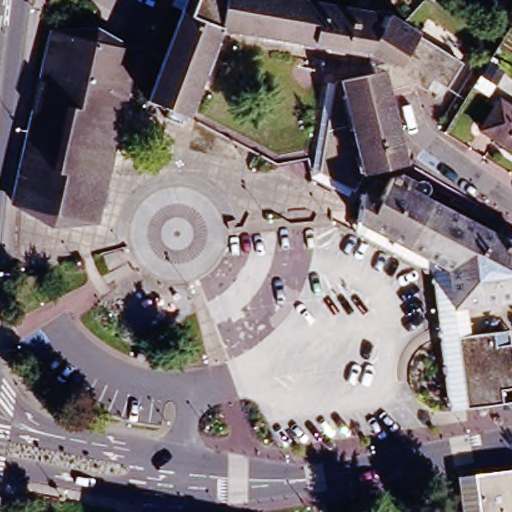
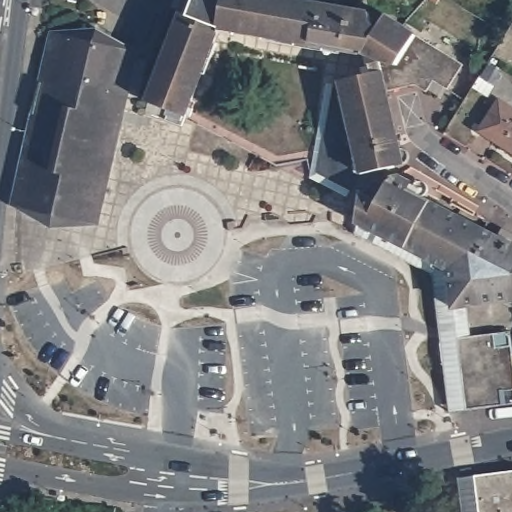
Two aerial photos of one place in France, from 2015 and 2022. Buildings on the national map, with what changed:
unchanged [(428,94),(419,87),(387,96),(400,151),(392,153),(395,171),(364,179),(350,198),(320,181),(345,54),(221,25),(189,112),(152,98),(188,0),(304,0),(349,10),(362,13),(371,31),(374,19),(380,21),(382,18),(465,66),(449,92),(442,104),(428,94)]
unchanged [(77,223),(80,217),(15,188),(50,35),(96,31),(139,52),(98,227),(77,223)]
unchanged [(467,92),(474,83),(487,60),(502,70),(487,90),(481,100),(467,92)]
unchanged [(476,133),(495,103),(512,113),(512,155),(476,133)]
unchanged [(448,275),(356,226),(360,202),(362,201),(377,185),(385,190),(389,182),(396,179),(409,186),(405,193),(497,242),(500,235),(512,242),(512,304),(464,309),(451,310),(448,275)]
unchanged [(50,235),(10,207),(15,188),(80,217),(77,223),(98,227),(50,235)]
unchanged [(455,339),(487,334),(490,329),(495,332),(510,330),(512,347),(512,405),(465,411),(455,339)]
unchanged [(512,471),(512,512),(479,512),(475,476),(512,471)]
unchanged [(475,476),(479,512),(461,512),(457,477),(475,476)]

